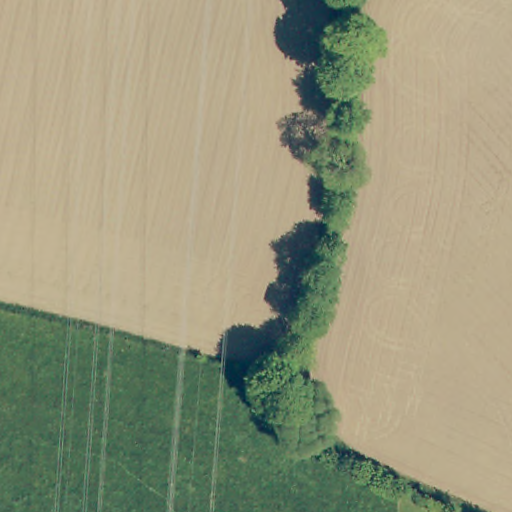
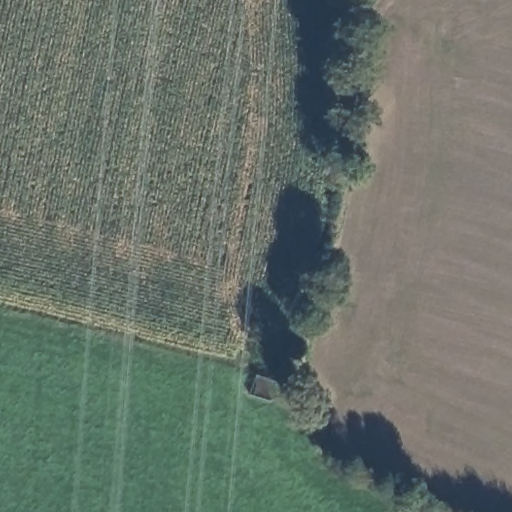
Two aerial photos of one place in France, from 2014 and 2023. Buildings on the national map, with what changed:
[]

